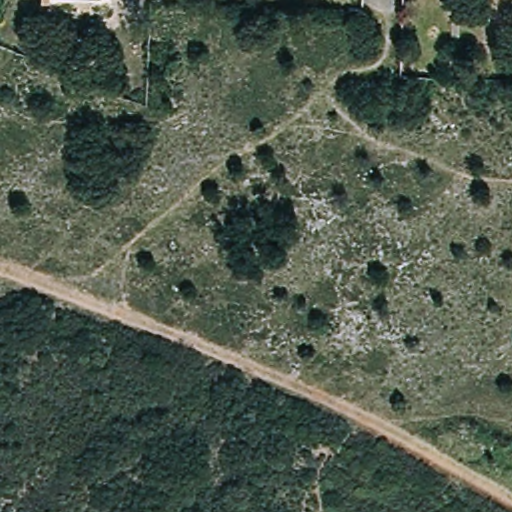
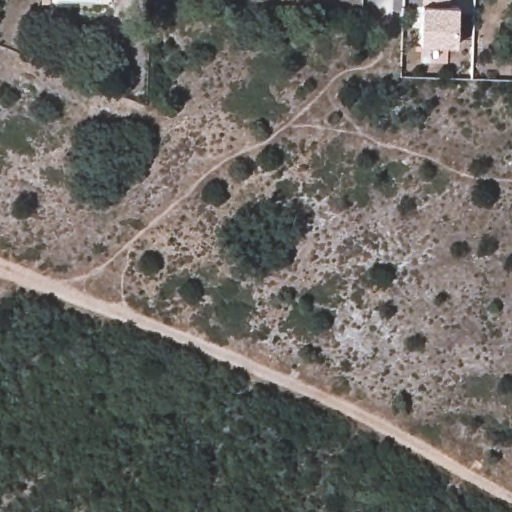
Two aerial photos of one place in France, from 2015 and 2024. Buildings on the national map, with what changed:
new [(450,0),(450,4),(459,4),(457,44),(420,43),(422,4),(422,0),(450,0)]

